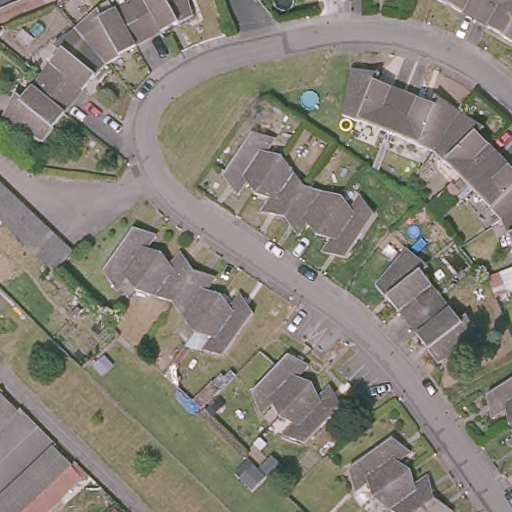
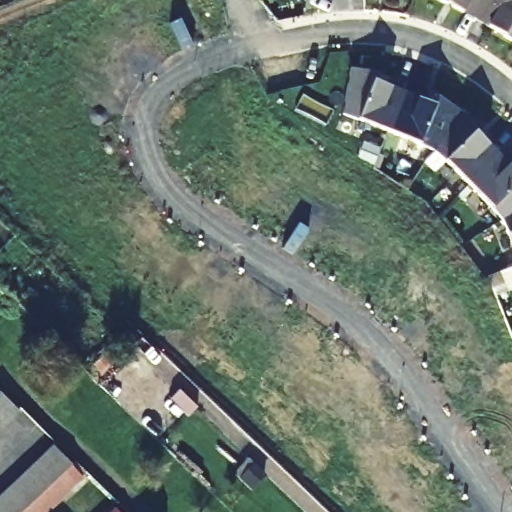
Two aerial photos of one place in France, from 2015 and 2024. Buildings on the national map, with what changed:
demolished [(128,0),(183,0),(188,15),(143,39),(123,3),(128,0)]
unchanged [(425,1),(426,0),(483,0),(469,25),(440,7),(439,9),(425,1)]
unchanged [(483,0),(512,0),(512,51),(469,25),(483,0)]
demolished [(88,12),(94,19),(97,18),(123,3),(143,39),(100,64),(70,29),(88,12)]
demolished [(55,53),(58,49),(50,43),(70,29),(100,64),(91,77),(89,75),(68,102),(35,75),(55,53)]
unchanged [(346,115),(355,69),(380,73),(385,73),(381,83),(409,94),(393,134),(346,115)]
demolished [(68,102),(46,129),(48,129),(37,143),(0,122),(0,110),(6,98),(12,102),(16,97),(35,75),(68,102)]
unchanged [(436,104),(440,95),(445,98),(465,111),(438,151),(393,134),(409,94),(436,104)]
unchanged [(485,124),(490,129),(482,135),(503,155),(473,185),(438,151),(465,111),(485,124)]
demolished [(255,194),(247,184),(236,197),(222,177),(252,133),(276,138),(267,153),(281,155),(255,194)]
demolished [(261,210),(270,198),(255,194),(281,155),(304,187),(284,216),(261,210)]
unchanged [(512,217),(507,220),(473,185),(503,155),(512,165),(512,217)]
unchanged [(6,189),(15,197),(25,207),(35,216),(44,224),(53,234),(63,244),(73,253),(55,273),(45,263),(35,254),(25,244),(16,236),(6,227),(0,221),(0,183),(6,189)]
demolished [(307,223),(298,235),(284,216),(304,187),(340,196),(316,234),(307,223)]
demolished [(340,196),(350,208),(360,194),(374,214),(345,258),(321,252),(330,239),(316,234),(340,196)]
unchanged [(512,217),(512,232),(507,220),(512,217)]
demolished [(130,290),(122,278),(111,292),(98,271),(129,229),(151,234),(143,248),(156,253),(130,290)]
demolished [(375,284),(405,249),(425,265),(420,270),(422,274),(440,298),(408,323),(375,284)]
demolished [(130,290),(156,253),(165,264),(175,251),(188,272),(166,302),(130,290)]
demolished [(166,302),(188,272),(212,278),(203,291),(215,296),(188,332),(166,302)]
demolished [(225,306),(233,294),(248,314),(218,357),(194,349),(203,337),(188,332),(215,296),(225,306)]
demolished [(440,298),(458,321),(461,324),(468,319),(478,342),(438,363),(423,341),(408,323),(440,298)]
demolished [(280,416),(272,404),(261,415),(251,393),(288,354),(310,366),(298,377),(311,384),(280,416)]
demolished [(491,419),(486,394),(512,378),(512,422),(510,424),(506,410),(491,419)]
demolished [(318,396),(328,384),(341,406),(305,444),(280,435),(292,423),(280,416),(311,384),(318,396)]
unchanged [(8,418),(0,427),(0,388),(19,407),(8,418)]
demolished [(512,422),(512,426),(510,424),(512,422)]
demolished [(367,497),(363,484),(350,493),(343,468),(388,438),(406,453),(393,463),(405,471),(367,497)]
unchanged [(7,483),(19,472),(30,461),(40,451),(52,439),(70,459),(58,470),(48,480),(37,491),(26,501),(15,512),(14,512),(0,512),(0,490),(7,483)]
demolished [(512,439),(512,446),(507,442),(512,439)]
demolished [(367,497),(405,471),(410,484),(422,476),(428,499),(410,512),(389,512),(367,497)]
unchanged [(28,504),(51,483),(61,494),(43,512),(20,512),(28,504)]
demolished [(428,499),(449,512),(410,512),(428,499)]

